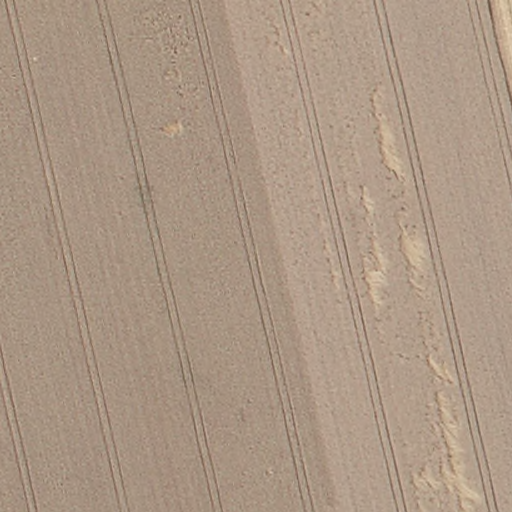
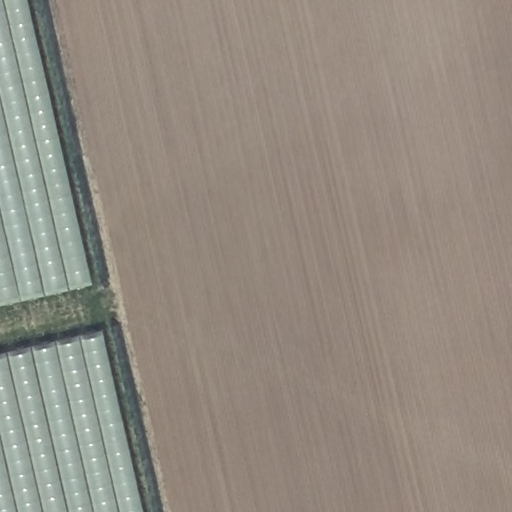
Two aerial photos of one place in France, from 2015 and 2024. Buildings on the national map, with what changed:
new [(0,303),(0,0),(33,0),(96,282),(0,303)]
new [(148,512),(0,512),(0,351),(108,327),(148,512)]

